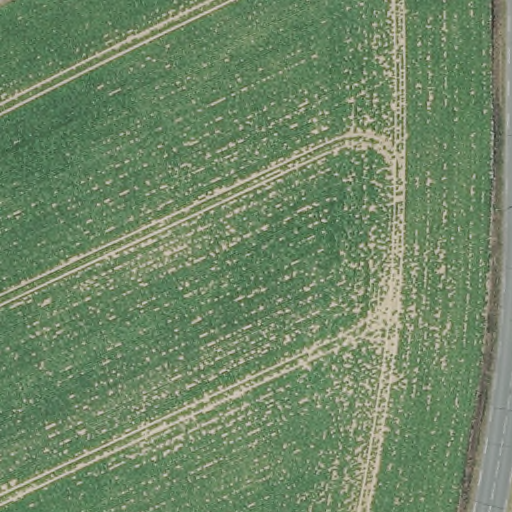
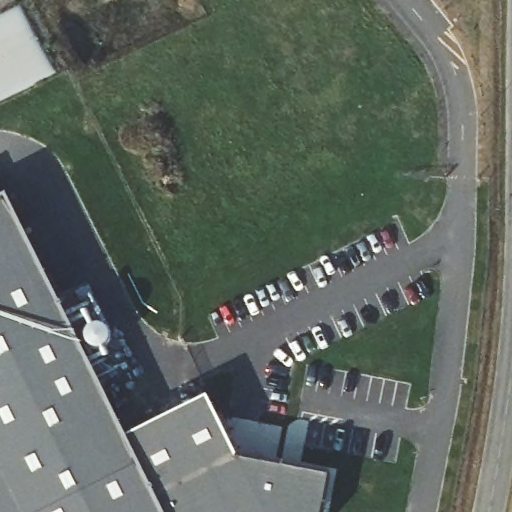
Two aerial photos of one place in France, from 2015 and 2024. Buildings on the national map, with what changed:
new [(206,400),(237,463),(327,479),(320,512),(0,512),(0,197),(125,441),(206,400)]

